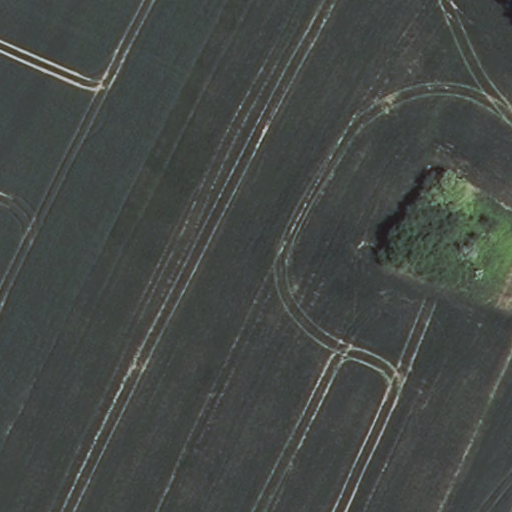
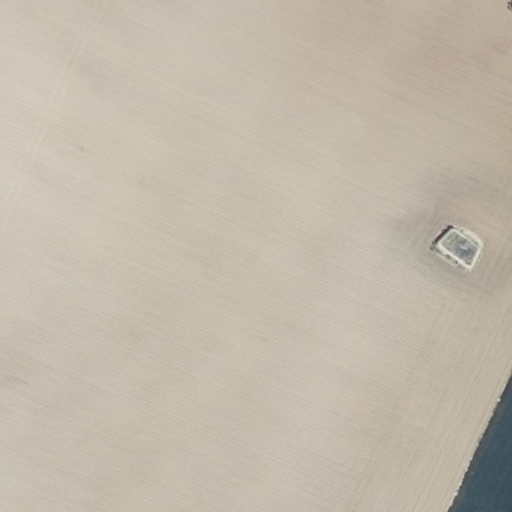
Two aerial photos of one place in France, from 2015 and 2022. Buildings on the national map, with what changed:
unchanged [(455,221),(485,244),(468,268),(438,244),(455,221)]

